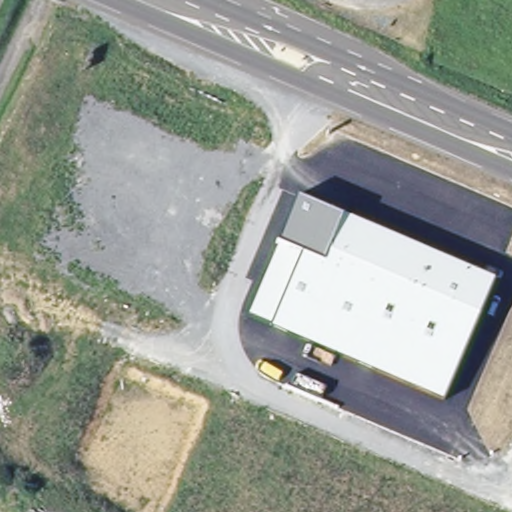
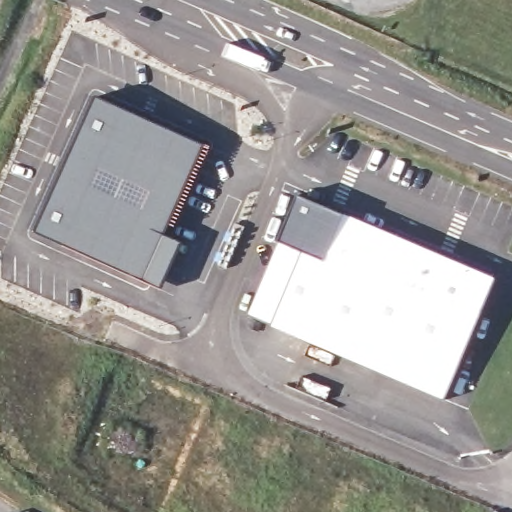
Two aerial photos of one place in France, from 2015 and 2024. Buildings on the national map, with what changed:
new [(94,92),(204,140),(177,199),(68,151),(94,92)]
new [(68,151),(177,199),(169,218),(60,169),(68,151)]
new [(60,169),(169,218),(143,277),(34,229),(60,169)]
unchanged [(495,280),(444,401),(248,315),(299,196),(495,280)]
new [(20,512),(18,512),(18,511),(20,512)]

